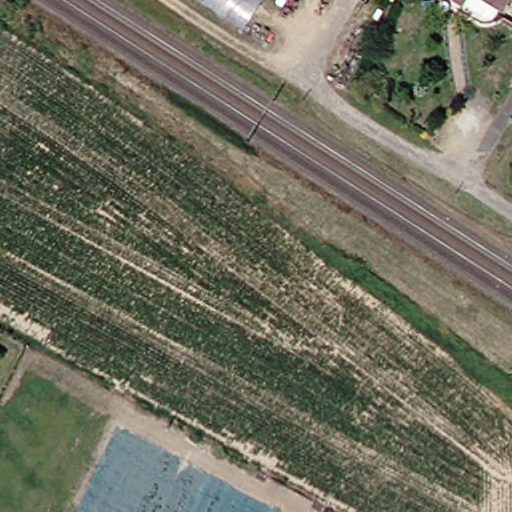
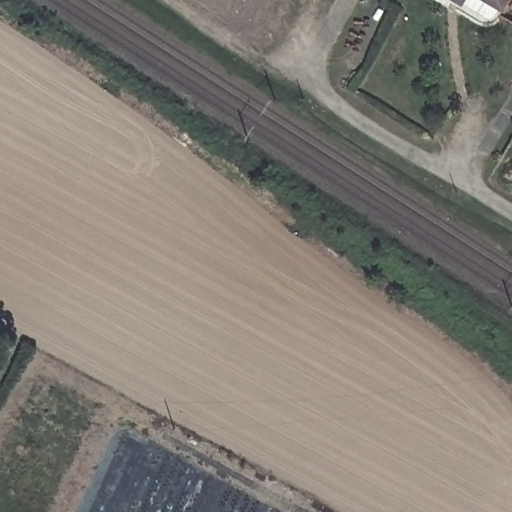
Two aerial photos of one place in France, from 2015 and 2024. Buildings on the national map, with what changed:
new [(244,31),(198,0),(263,0),(244,31)]
demolished [(244,24),(207,0),(262,0),(244,24)]
unchanged [(461,1),(459,0),(461,0),(461,1)]
unchanged [(512,0),(504,11),(488,0),(512,0)]

